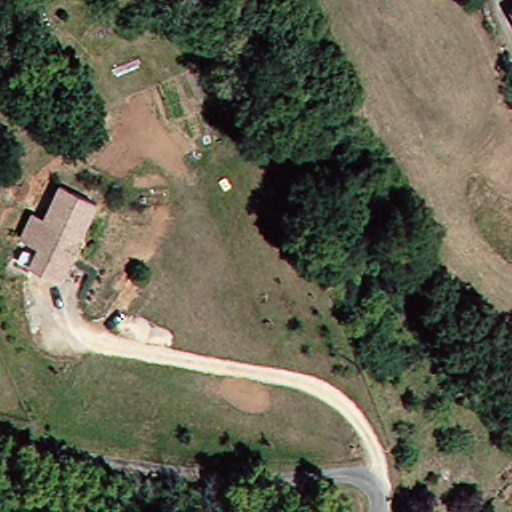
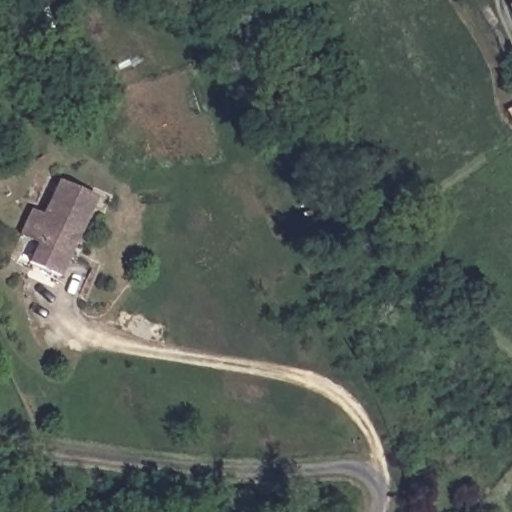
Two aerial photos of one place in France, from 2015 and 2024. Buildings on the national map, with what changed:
unchanged [(83,191),(48,271),(16,257),(25,237),(8,230),(18,204),(31,210),(45,174),(83,191)]

